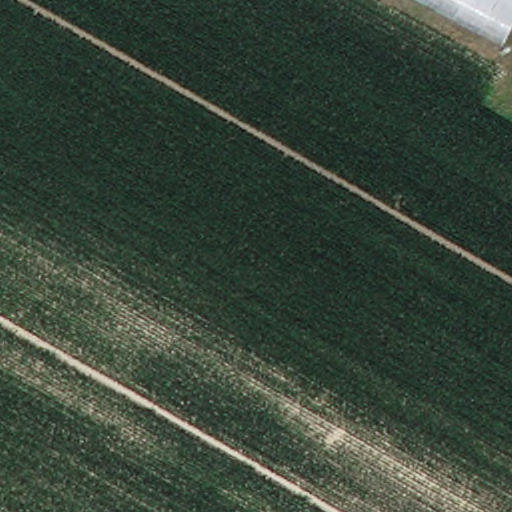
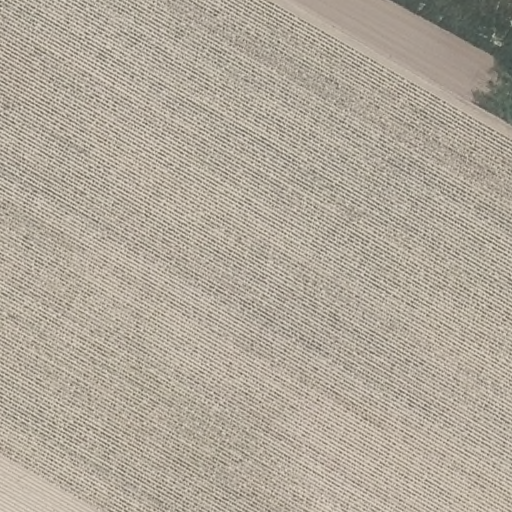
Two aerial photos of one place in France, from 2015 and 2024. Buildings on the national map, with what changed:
demolished [(435,0),(512,0),(512,32),(508,40),(435,0)]

